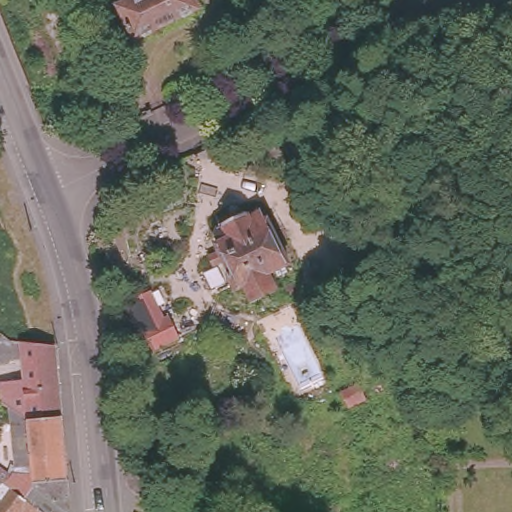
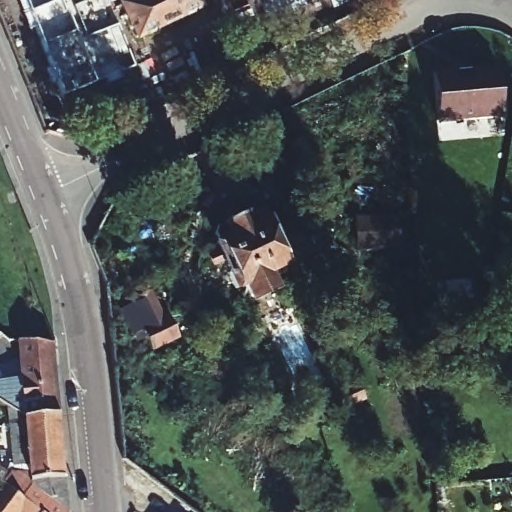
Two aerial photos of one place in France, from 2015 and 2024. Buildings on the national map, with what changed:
new [(23,0),(106,0),(131,69),(60,99),(23,0)]
unchanged [(118,0),(188,0),(193,12),(130,44),(114,12),(121,8),(118,0)]
new [(257,0),(302,0),(263,15),(257,0)]
new [(456,69),(457,78),(467,77),(466,67),(497,65),(501,119),(438,124),(433,71),(456,69)]
unchanged [(274,283),(271,291),(256,298),(248,295),(243,284),(235,288),(230,276),(208,286),(200,270),(213,264),(208,254),(217,250),(213,242),(216,241),(213,233),(215,225),(255,207),(261,220),(267,217),(288,262),(268,272),(274,283)]
unchanged [(131,331),(119,305),(134,297),(146,325),(152,322),(162,342),(135,354),(126,333),(131,331)]
unchanged [(36,348),(55,351),(62,421),(27,423),(25,423),(7,412),(0,407),(0,395),(25,393),(20,346),(36,348)]
unchanged [(33,512),(30,510),(0,488),(0,472),(17,485),(20,482),(32,491),(30,469),(15,470),(12,431),(27,430),(27,423),(62,421),(69,512),(33,512)]
unchanged [(166,502),(152,505),(145,501),(135,493),(125,486),(122,458),(171,495),(166,502)]
unchanged [(0,512),(0,506),(0,505),(0,488),(30,510),(28,512),(0,512)]
unchanged [(28,512),(30,510),(33,512),(28,512)]

